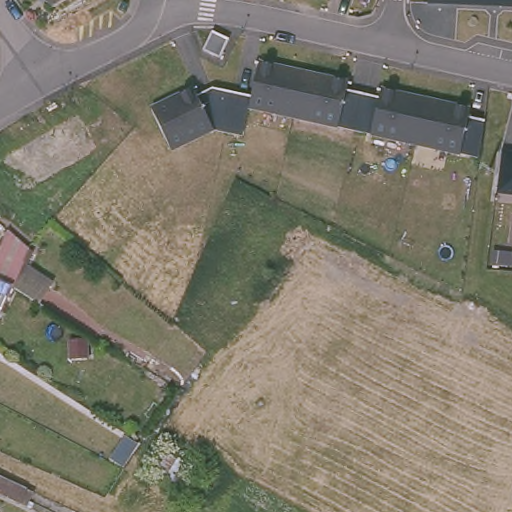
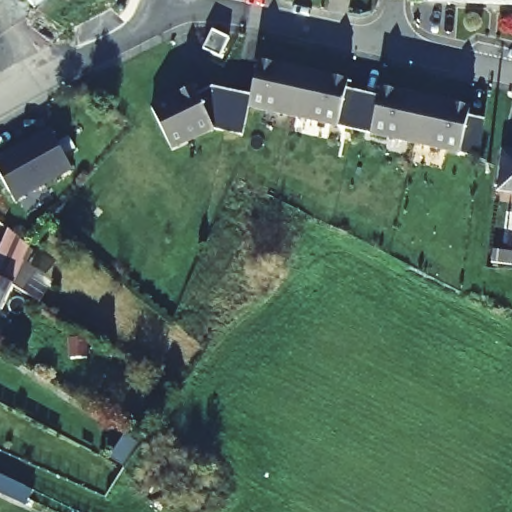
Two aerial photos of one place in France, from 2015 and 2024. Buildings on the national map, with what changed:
demolished [(53,7),(44,0),(63,0),(53,7)]
unchanged [(483,4),(428,2),(428,0),(487,0),(483,4)]
unchanged [(505,5),(501,1),(487,0),(512,0),(512,5),(505,5)]
unchanged [(228,39),(221,57),(204,50),(212,31),(228,39)]
unchanged [(483,136),(480,157),(249,106),(243,135),(213,129),(171,149),(151,109),(193,87),(196,95),(213,87),(251,96),(259,62),(348,81),(346,89),(379,97),(381,89),(470,108),(469,116),(484,120),(483,136)]
new [(0,155),(49,127),(73,170),(16,203),(0,173),(0,155)]
unchanged [(501,151),(512,152),(512,192),(496,191),(501,151)]
unchanged [(0,238),(3,231),(24,249),(8,285),(0,282),(0,238)]
unchanged [(0,301),(0,282),(8,285),(0,301)]
unchanged [(21,505),(0,495),(0,476),(28,489),(35,492),(27,508),(21,505)]

